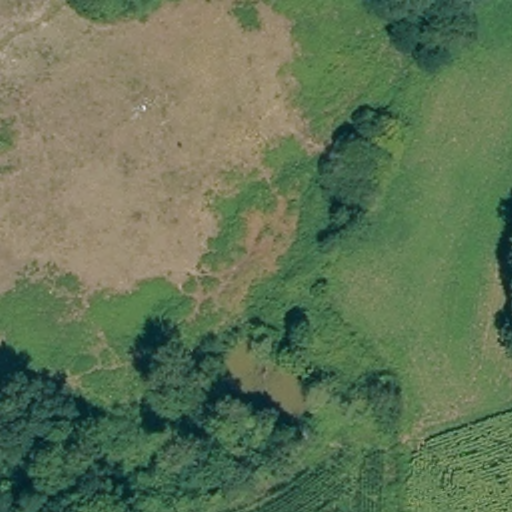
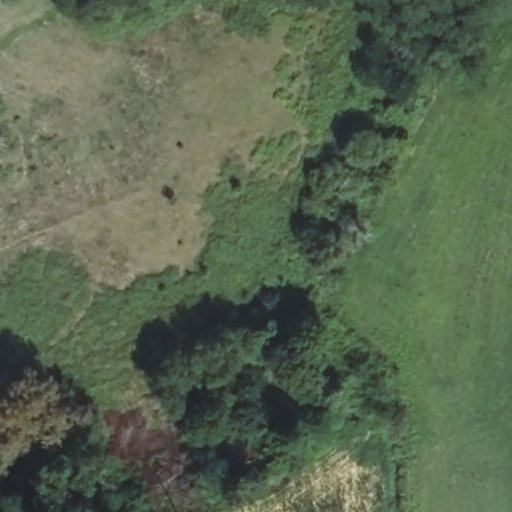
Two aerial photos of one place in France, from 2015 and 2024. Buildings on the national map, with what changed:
[]

